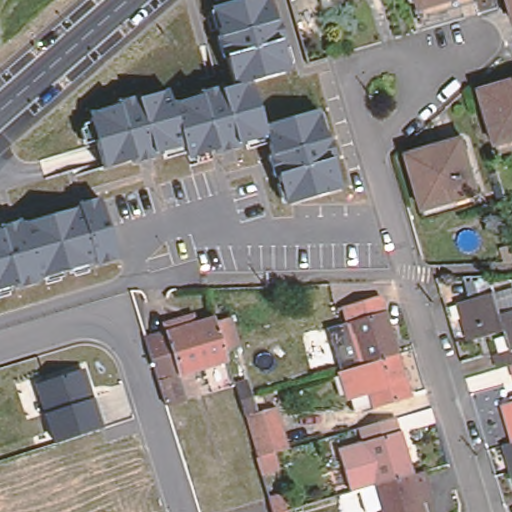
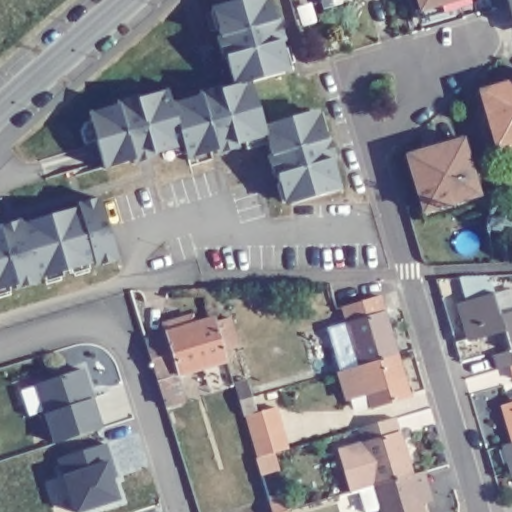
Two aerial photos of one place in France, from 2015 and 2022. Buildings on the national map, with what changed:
unchanged [(104,116),(107,107),(168,91),(173,101),(230,82),(207,13),(244,0),(270,0),(295,71),(250,85),(265,127),(270,140),(265,141),(194,165),(188,155),(165,162),(158,149),(108,166),(99,142),(78,147),(72,128),(104,116)]
unchanged [(416,1),(416,0),(419,0),(416,1)]
unchanged [(507,0),(512,0),(512,18),(512,17),(507,0)]
unchanged [(512,132),(492,137),(477,85),(512,75),(512,132)]
unchanged [(287,192),(280,188),(265,141),(270,140),(265,127),(313,113),(313,118),(321,116),(342,190),(290,206),(287,192)]
unchanged [(460,134),(475,187),(422,202),(406,150),(460,134)]
unchanged [(98,200),(117,257),(0,293),(0,230),(98,200)]
unchanged [(507,361),(493,365),(490,351),(507,345),(500,326),(465,336),(454,299),(490,289),(497,311),(512,306),(512,375),(507,361)]
unchanged [(368,406),(363,387),(353,390),(354,392),(346,395),(338,370),(342,369),(337,356),(343,354),(342,348),(347,347),(348,352),(352,351),(343,321),(338,306),(372,296),(377,311),(390,355),(403,398),(369,408),(368,406)]
unchanged [(163,330),(161,322),(190,313),(192,321),(212,315),(212,320),(227,316),(235,344),(222,349),(224,358),(200,366),(177,373),(181,389),(160,395),(155,379),(142,336),(163,330)]
unchanged [(35,385),(85,370),(102,430),(52,445),(35,385)]
unchanged [(258,459),(252,440),(246,418),(240,402),(237,387),(249,383),(253,398),(258,414),(280,408),(286,430),(292,450),(275,455),(280,471),(263,477),(258,459)]
unchanged [(498,400),(512,396),(512,437),(510,437),(498,400)]
unchanged [(360,512),(353,487),(347,489),(334,445),(358,438),(353,423),(388,413),(393,427),(406,472),(418,512),(379,512),(377,507),(360,512)]
unchanged [(500,441),(510,437),(512,437),(512,478),(511,478),(500,441)]
new [(113,475),(122,501),(87,512),(74,512),(62,477),(57,459),(107,443),(117,473),(113,475)]
unchanged [(273,493),(277,508),(279,512),(265,512),(261,497),(273,493)]

